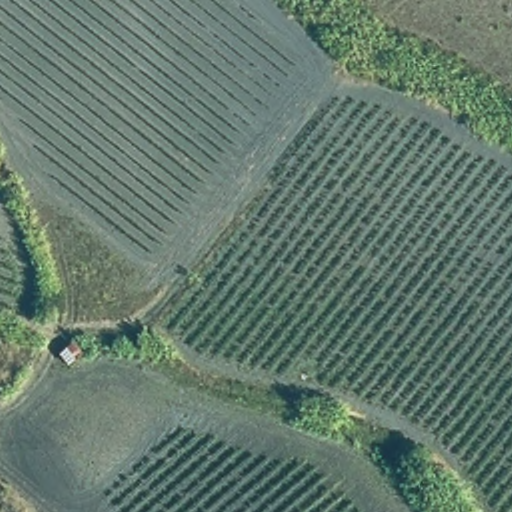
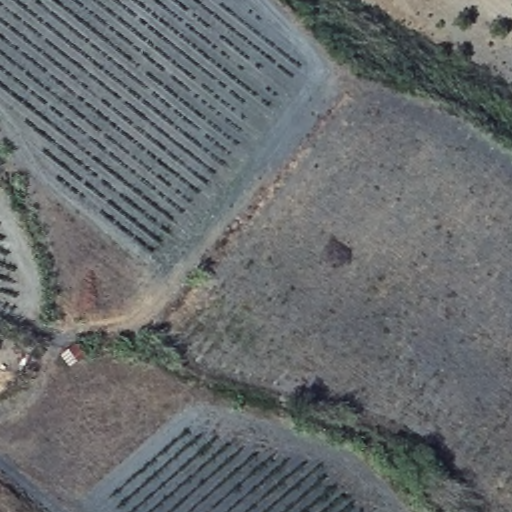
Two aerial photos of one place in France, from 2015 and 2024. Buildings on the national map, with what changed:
unchanged [(61,350),(78,337),(87,349),(71,365),(61,350)]

